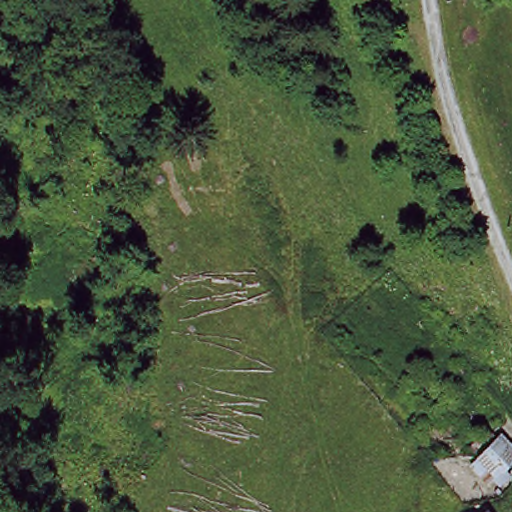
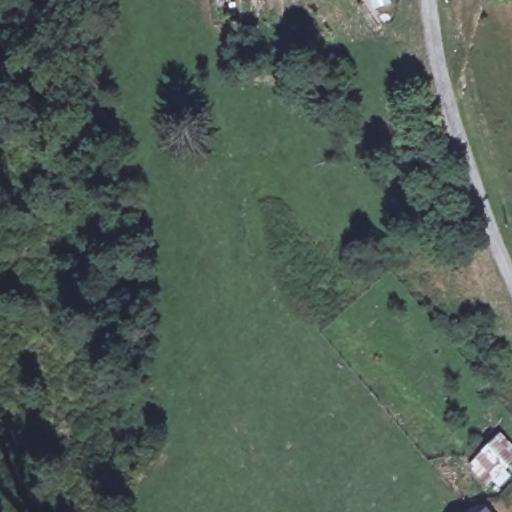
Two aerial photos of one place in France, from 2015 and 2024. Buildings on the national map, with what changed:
unchanged [(512,453),(493,471),(480,455),(500,436),(512,450),(512,453)]
unchanged [(474,510),(476,512),(472,512),(474,510)]

